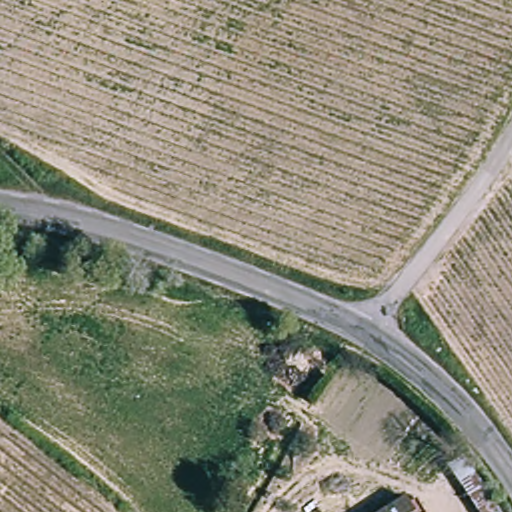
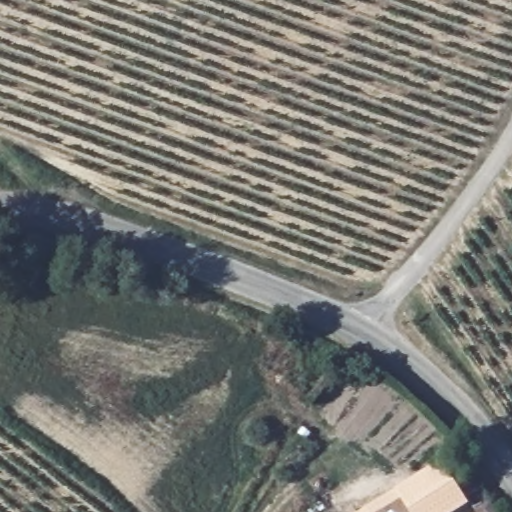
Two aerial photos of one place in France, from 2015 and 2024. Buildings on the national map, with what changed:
unchanged [(481,512),(447,460),(464,450),(502,510),(500,512),(481,512)]
new [(447,460),(475,501),(458,512),(360,512),(397,489),(447,460)]

